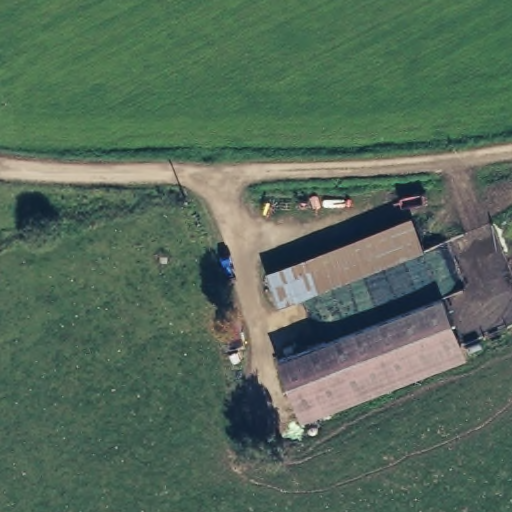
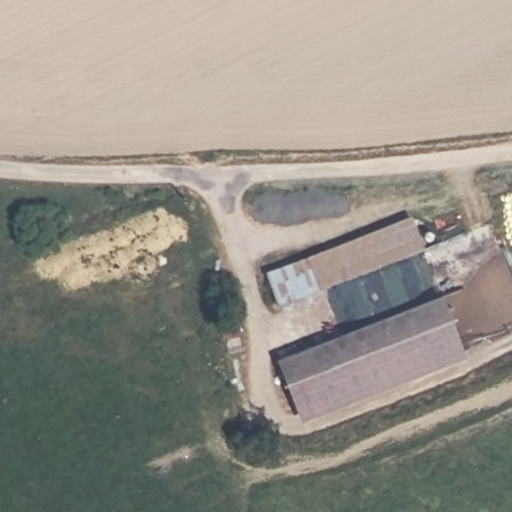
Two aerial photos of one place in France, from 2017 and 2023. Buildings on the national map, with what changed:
unchanged [(410,220),(421,247),(279,305),(267,277),(410,220)]
unchanged [(447,304),(465,353),(302,418),(285,369),(447,304)]

